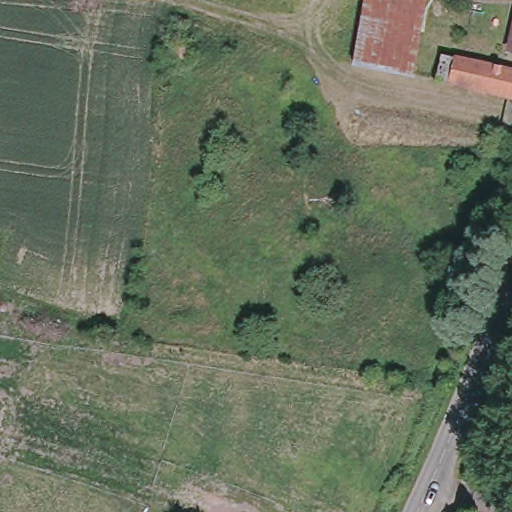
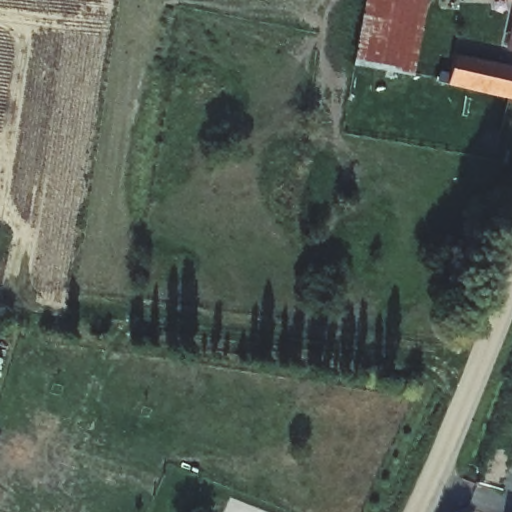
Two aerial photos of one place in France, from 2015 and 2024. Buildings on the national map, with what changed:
unchanged [(412,87),(350,76),(362,14),(365,0),(432,0),(412,87)]
unchanged [(512,5),(488,0),(512,0),(512,5)]
unchanged [(512,5),(512,59),(501,57),(512,5)]
unchanged [(440,61),(512,72),(512,100),(435,85),(440,61)]

